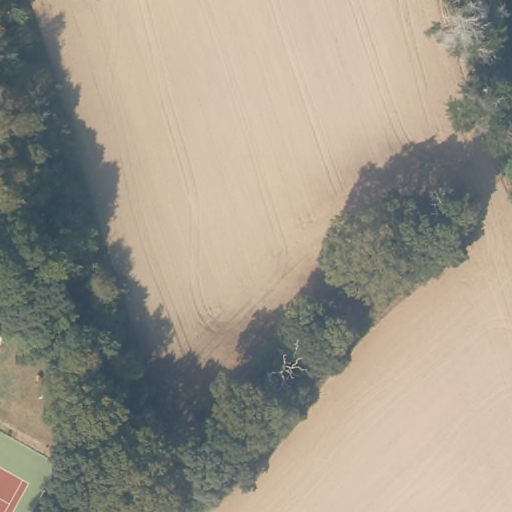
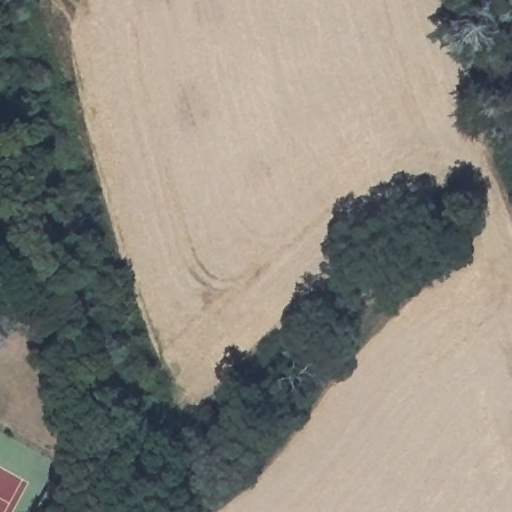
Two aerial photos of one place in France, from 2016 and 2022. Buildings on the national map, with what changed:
unchanged [(0,324),(0,319),(2,321),(0,324)]

